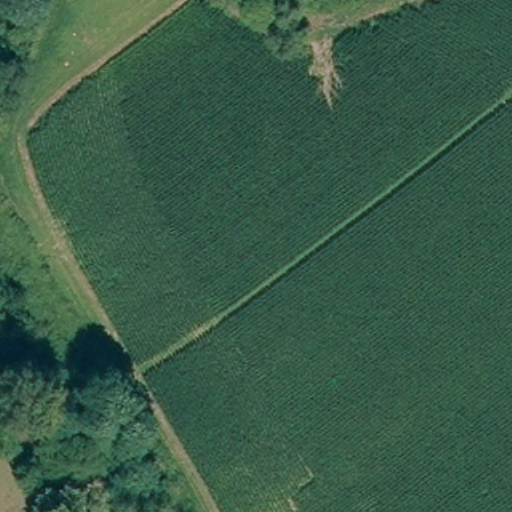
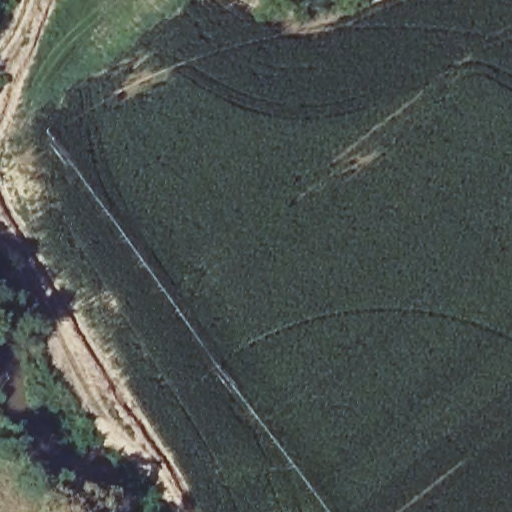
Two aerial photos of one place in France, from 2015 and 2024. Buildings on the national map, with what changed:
[]

